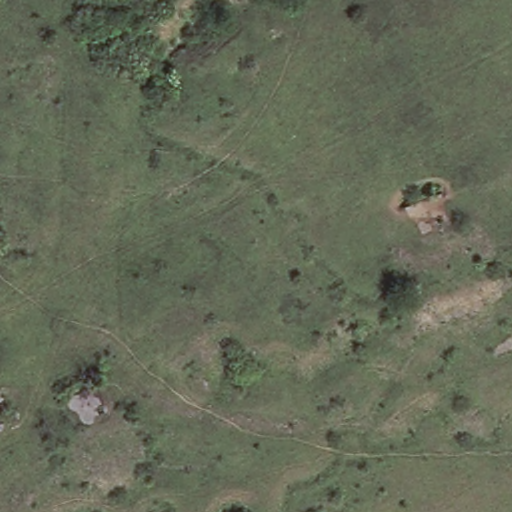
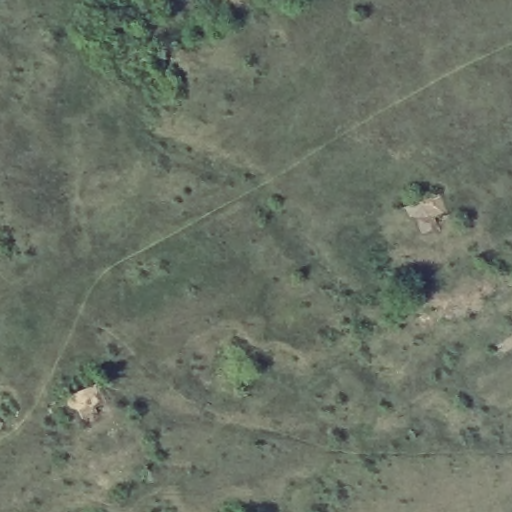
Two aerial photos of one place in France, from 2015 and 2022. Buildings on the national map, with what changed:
unchanged [(443,191),(453,220),(417,234),(405,207),(443,191)]

